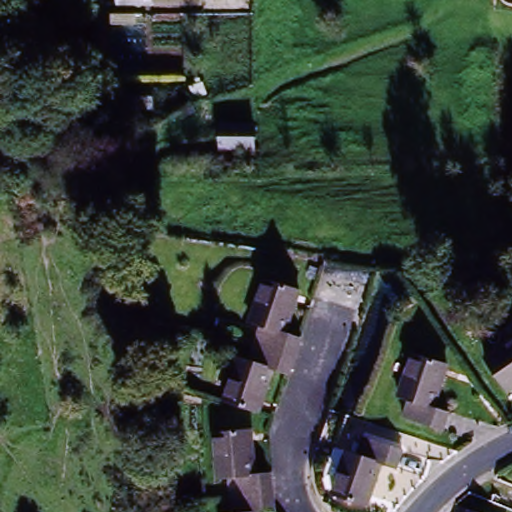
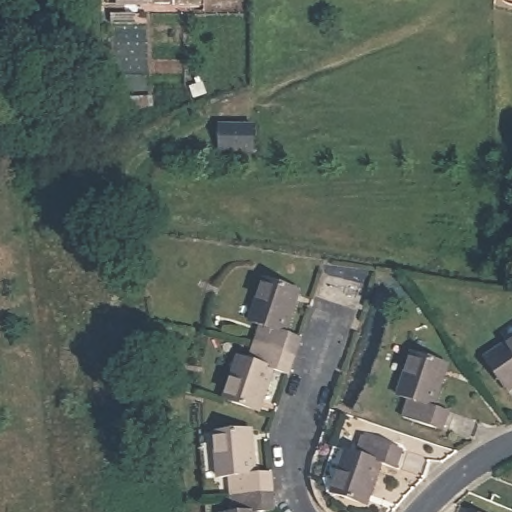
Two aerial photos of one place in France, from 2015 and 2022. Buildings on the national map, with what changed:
unchanged [(248,13),(202,12),(201,3),(148,2),(148,0),(248,0),(248,13)]
unchanged [(120,110),(120,120),(123,119),(123,128),(107,129),(107,111),(120,110)]
unchanged [(262,327),(250,322),(265,278),(300,290),(287,332),(302,337),(295,357),(257,343),(262,327)]
unchanged [(225,399),(240,357),(250,361),(257,343),(295,357),(289,376),(274,371),(260,411),(225,399)]
unchanged [(502,346),(504,348),(512,343),(512,390),(508,393),(485,358),(502,346)]
unchanged [(449,364),(435,407),(450,412),(443,430),(404,417),(410,399),(398,395),(412,351),(449,364)]
unchanged [(268,492),(227,496),(225,477),(213,478),(210,433),(247,430),(250,474),(267,472),(268,492)]
unchanged [(403,450),(397,468),(383,462),(367,506),(331,493),(345,450),(358,454),(365,436),(403,450)]
unchanged [(270,511),(262,512),(228,512),(227,496),(268,492),(270,511)]

